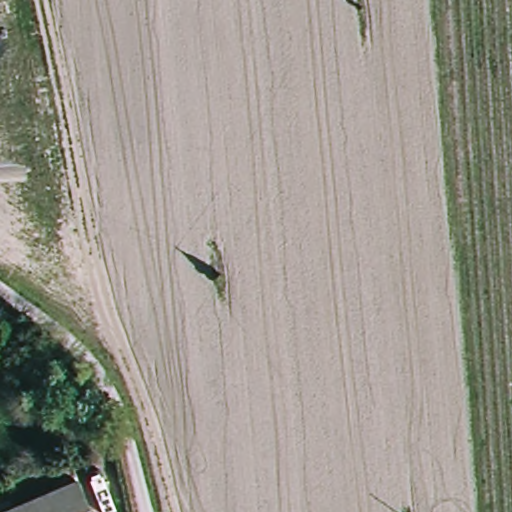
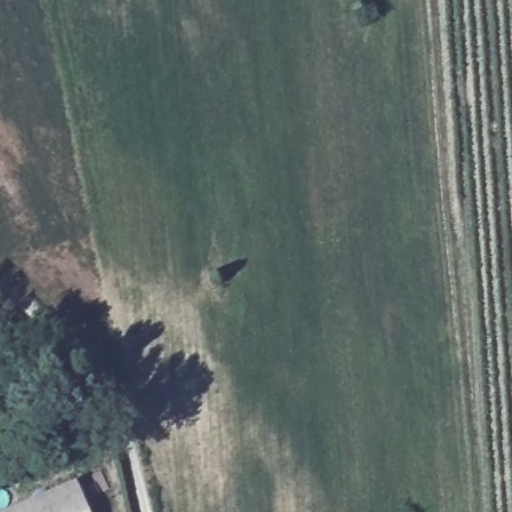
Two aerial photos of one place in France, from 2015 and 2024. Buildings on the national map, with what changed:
unchanged [(89,512),(0,512),(0,511),(77,479),(89,512)]

